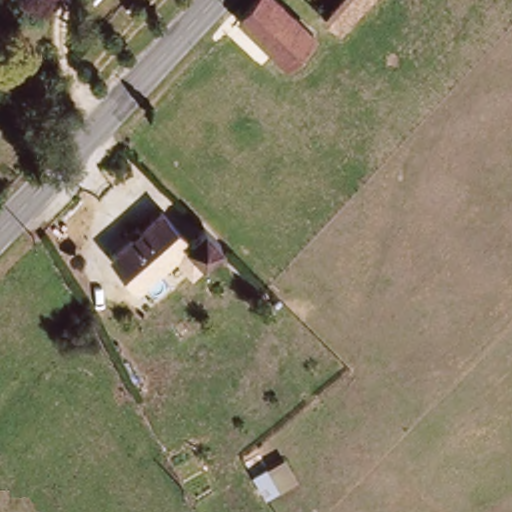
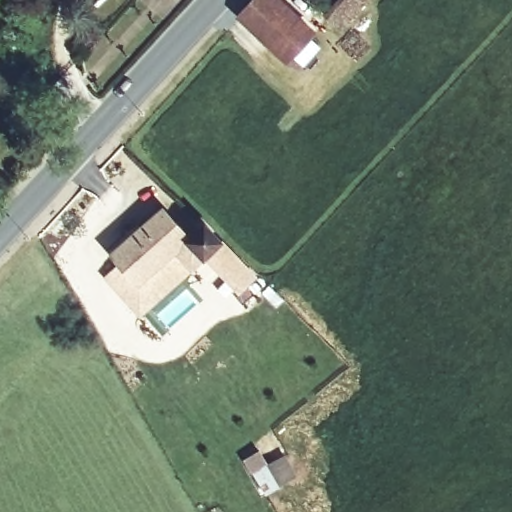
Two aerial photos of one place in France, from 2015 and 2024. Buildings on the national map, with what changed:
unchanged [(311,35),(285,64),(236,18),(253,0),(273,0),(311,35)]
unchanged [(328,15),(341,0),(365,0),(340,27),(328,15)]
unchanged [(111,255),(163,210),(189,240),(204,228),(222,246),(203,262),(187,243),(138,286),(111,255)]

